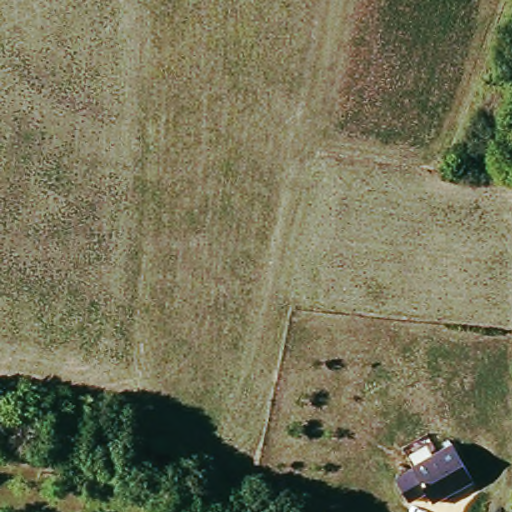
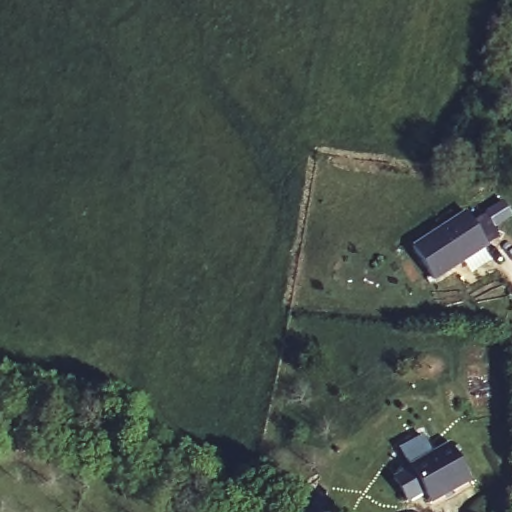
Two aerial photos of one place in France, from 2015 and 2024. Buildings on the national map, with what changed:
new [(467,210),(490,245),(435,281),(412,246),(467,210)]
unchanged [(115,404),(116,381),(135,382),(133,405),(115,404)]
unchanged [(409,465),(450,442),(472,480),(431,502),(409,465)]
new [(407,501),(393,477),(410,467),(425,492),(407,501)]

